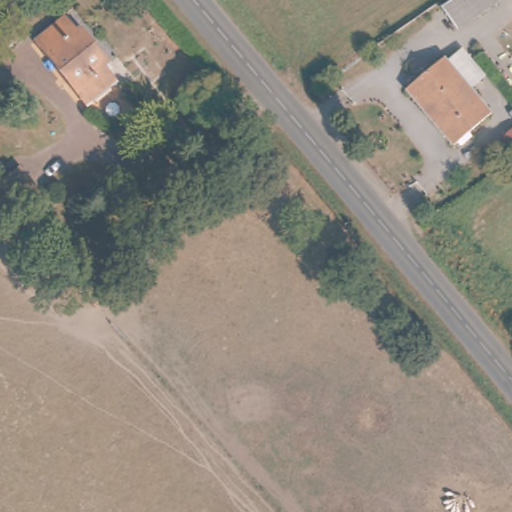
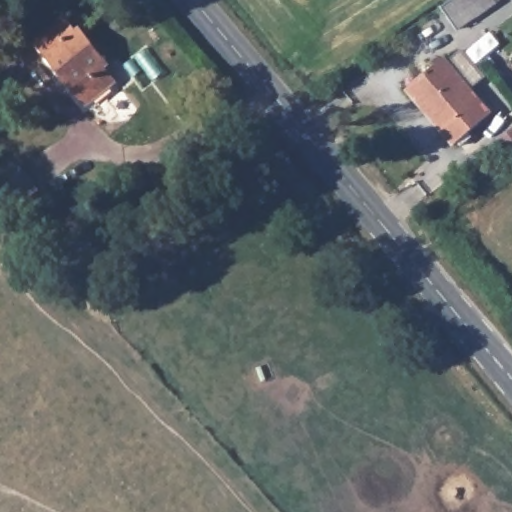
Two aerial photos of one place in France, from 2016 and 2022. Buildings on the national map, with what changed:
unchanged [(446,0),(495,0),(460,25),(444,1),(446,0)]
unchanged [(109,60),(102,66),(112,80),(82,102),(36,37),(74,12),(109,60)]
unchanged [(497,110),(459,144),(408,85),(447,52),(497,110)]
unchanged [(15,172),(27,185),(0,212),(0,186),(15,172)]

